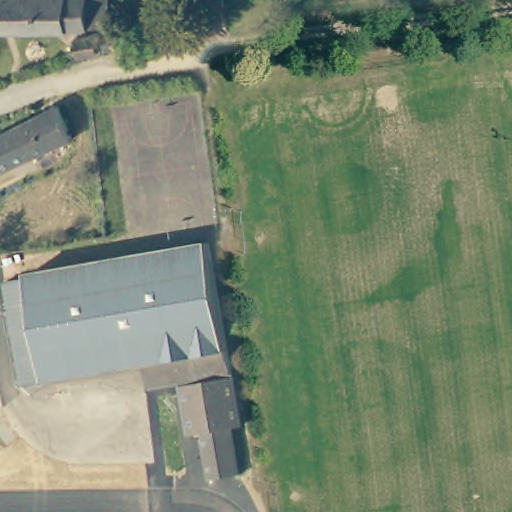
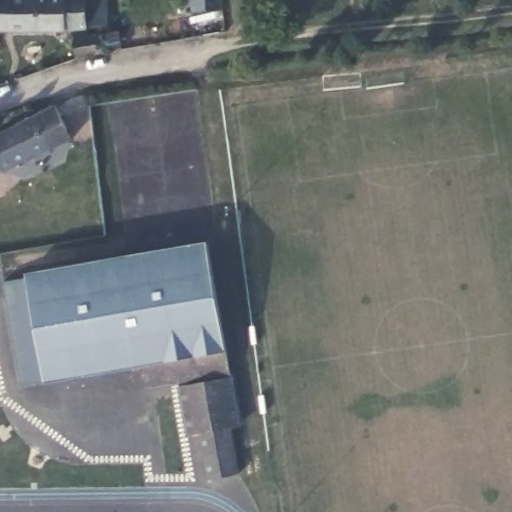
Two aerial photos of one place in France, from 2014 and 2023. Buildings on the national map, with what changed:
unchanged [(90,28),(0,29),(0,0),(104,0),(105,25),(90,25),(90,28)]
unchanged [(190,0),(222,0),(222,4),(193,7),(192,2),(190,0)]
unchanged [(119,31),(122,49),(106,52),(102,34),(119,31)]
unchanged [(78,58),(75,40),(100,34),(103,53),(78,58)]
unchanged [(0,167),(0,135),(56,108),(70,137),(2,171),(0,167)]
unchanged [(211,242),(230,351),(148,365),(27,385),(7,276),(211,242)]
unchanged [(230,351),(244,426),(234,428),(242,477),(212,482),(204,433),(194,434),(185,385),(152,391),(148,365),(230,351)]

